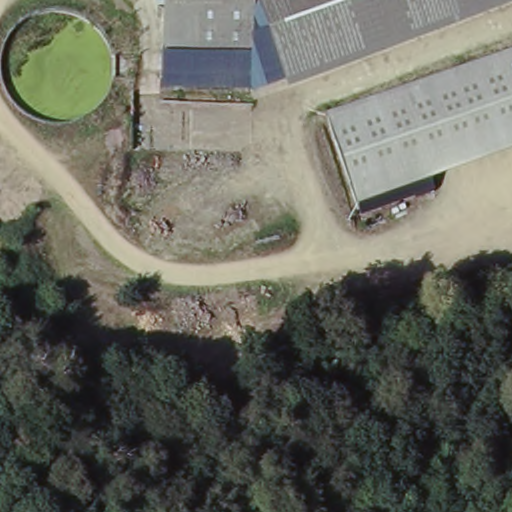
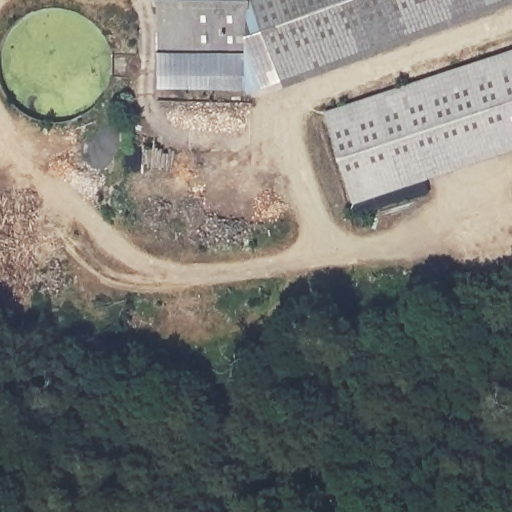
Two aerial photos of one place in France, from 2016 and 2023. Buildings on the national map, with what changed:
unchanged [(286,81),(263,86),(165,85),(167,0),(162,0),(512,0),(512,5),(288,86),(286,81)]
unchanged [(512,154),(356,204),(326,111),(512,50),(512,154)]

